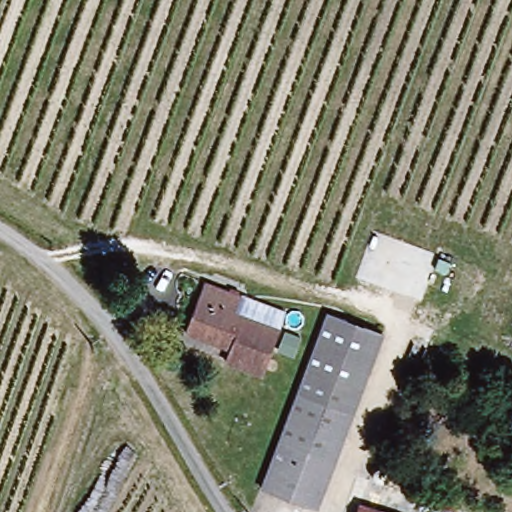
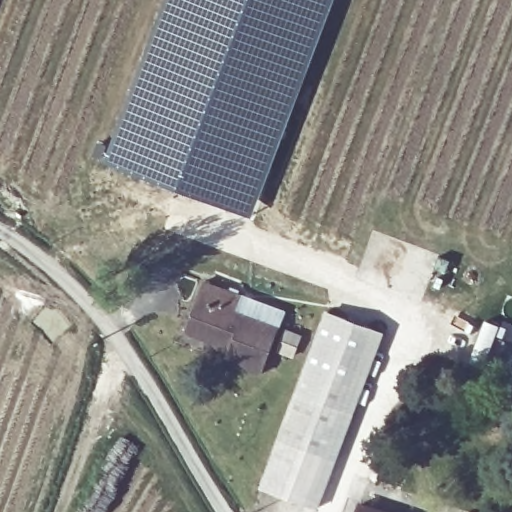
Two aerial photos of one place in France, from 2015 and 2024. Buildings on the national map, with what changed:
new [(100,160),(106,147),(120,116),(165,0),(335,0),(285,134),(251,219),(154,181),(99,162),(100,160)]
unchanged [(187,336),(204,284),(235,294),(232,306),(271,320),(253,373),(232,367),(237,351),(187,336)]
unchanged [(374,337),(357,388),(304,372),(322,321),(343,327),(374,337)]
unchanged [(263,491),(304,372),(357,388),(315,508),(263,491)]
unchanged [(396,512),(358,512),(362,500),(396,512)]

